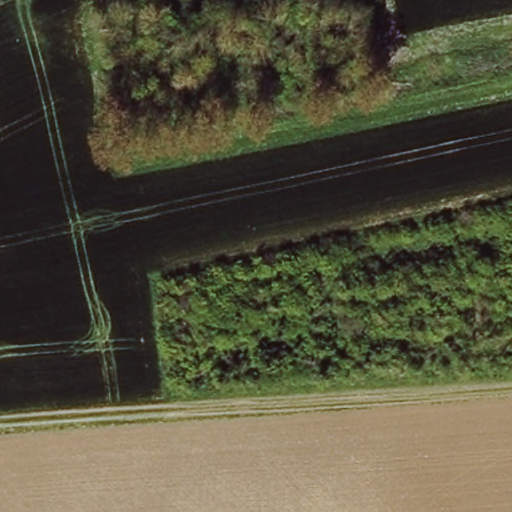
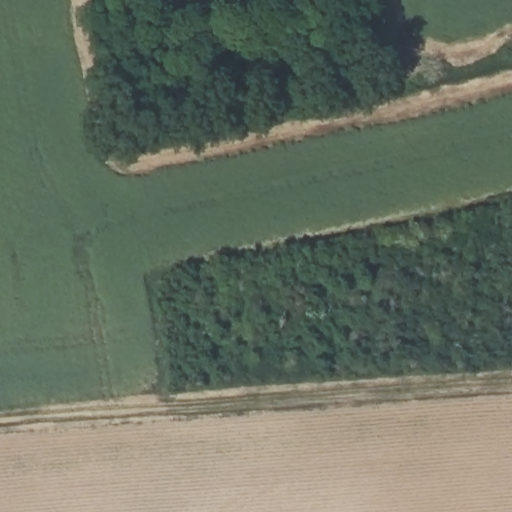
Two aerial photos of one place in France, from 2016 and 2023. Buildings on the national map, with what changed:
[]

